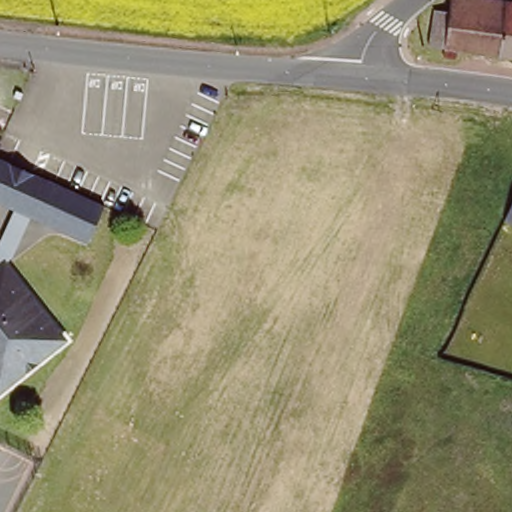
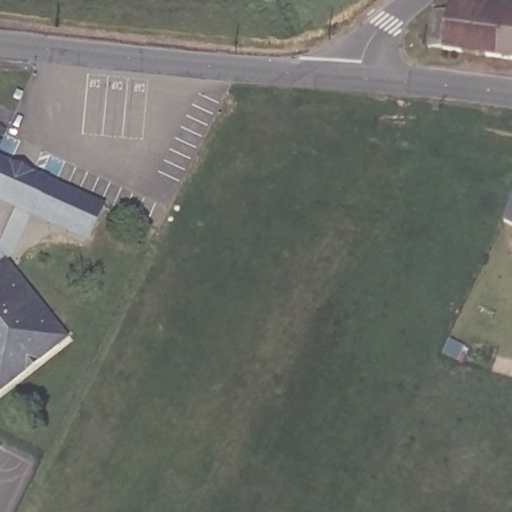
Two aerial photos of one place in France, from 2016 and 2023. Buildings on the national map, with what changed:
unchanged [(512,56),(443,46),(428,44),(434,6),(448,8),(449,0),(511,0),(512,0),(512,56)]
unchanged [(105,205),(90,239),(31,217),(9,255),(0,263),(0,242),(13,209),(0,205),(0,159),(105,205)]
unchanged [(512,223),(505,219),(512,206),(512,223)]
unchanged [(9,255),(70,333),(0,388),(0,263),(9,255)]

